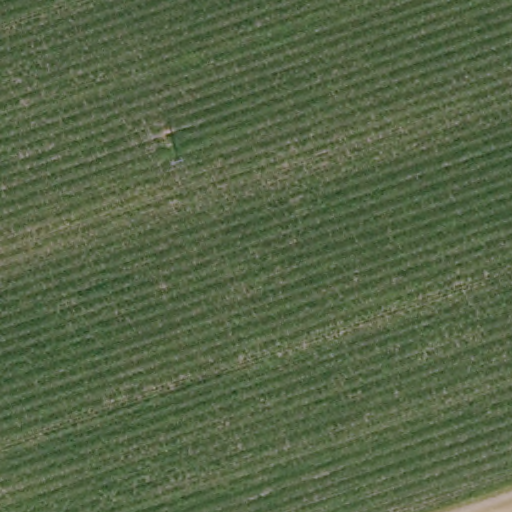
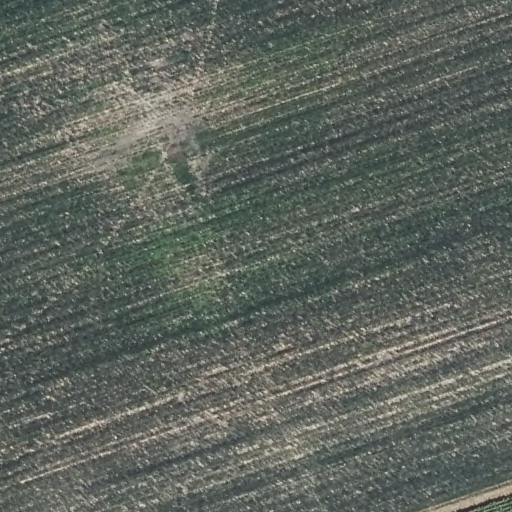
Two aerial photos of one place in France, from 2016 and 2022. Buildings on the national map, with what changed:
[]

